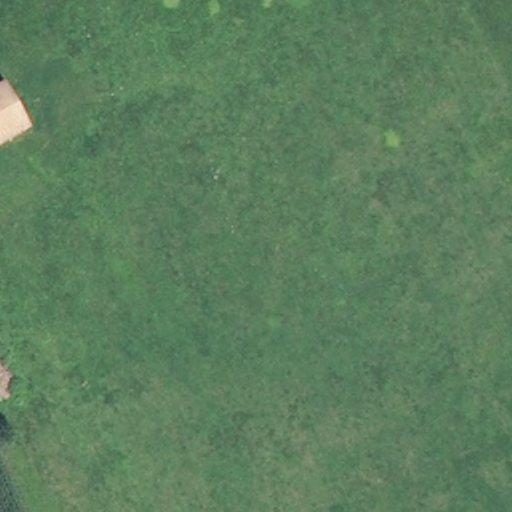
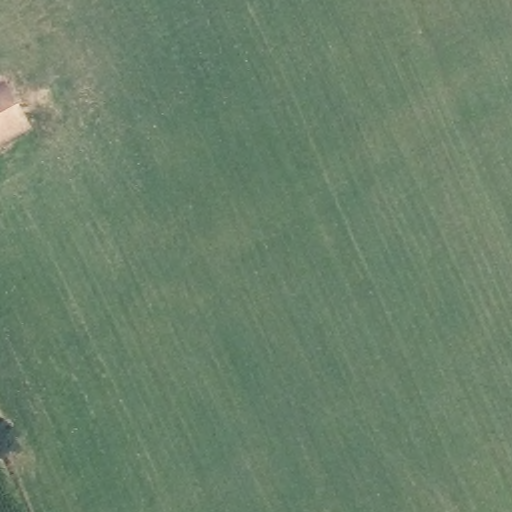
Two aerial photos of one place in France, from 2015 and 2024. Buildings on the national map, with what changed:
unchanged [(27,138),(0,153),(0,101),(5,98),(27,138)]

